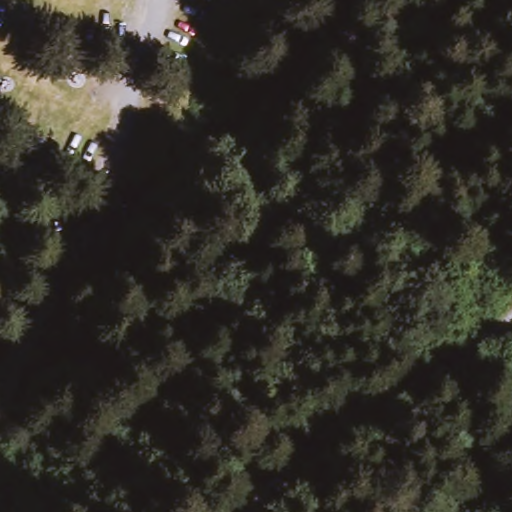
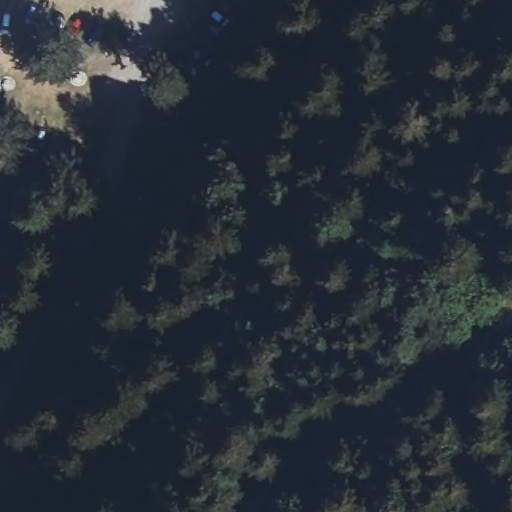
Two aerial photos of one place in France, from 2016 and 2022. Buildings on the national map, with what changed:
unchanged [(140,191),(126,228),(108,221),(120,187),(140,191)]

